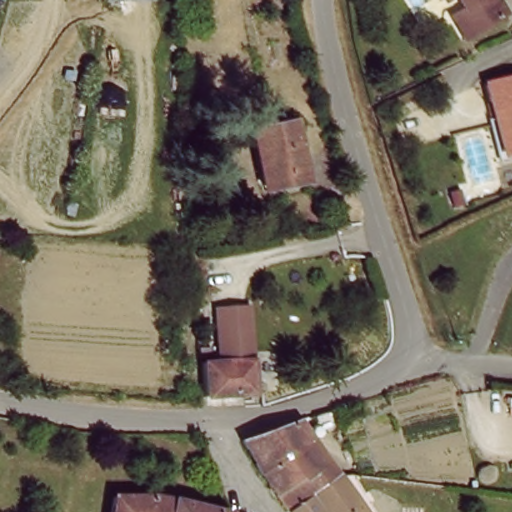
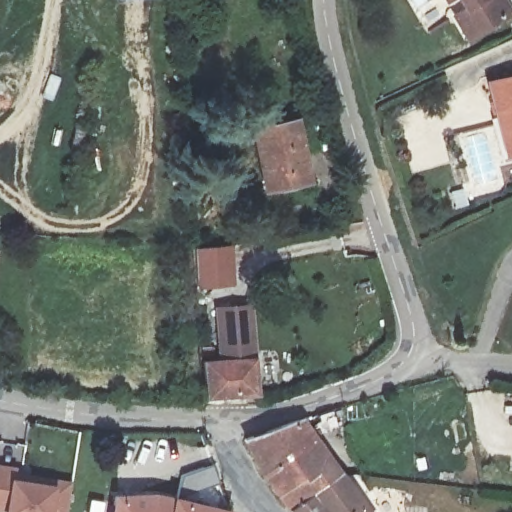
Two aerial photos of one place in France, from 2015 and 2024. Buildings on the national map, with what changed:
unchanged [(460,10),(465,8),(461,0),(497,0),(505,17),(473,34),(460,40),(448,16),(460,10)]
unchanged [(505,150),(484,79),(512,73),(512,148),(505,150)]
unchanged [(298,118),(308,183),(263,189),(253,125),(298,118)]
new [(233,244),(236,286),(197,290),(194,247),(233,244)]
unchanged [(220,360),(217,321),(250,320),(252,358),(253,366),(221,368),(220,360)]
unchanged [(205,405),(202,370),(221,368),(253,366),(255,401),(205,405)]
unchanged [(267,480),(250,443),(304,422),(347,481),(296,512),(292,512),(267,480)]
new [(15,473),(70,482),(65,512),(4,512),(4,510),(0,510),(0,465),(16,467),(15,473)]
unchanged [(369,512),(296,512),(347,481),(369,512)]
unchanged [(112,490),(215,503),(225,506),(224,512),(110,512),(112,490)]

